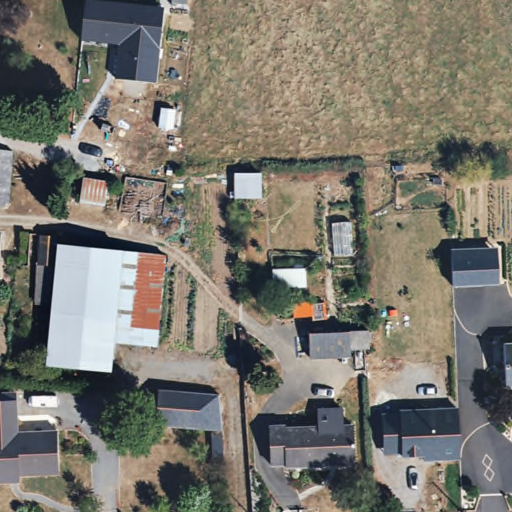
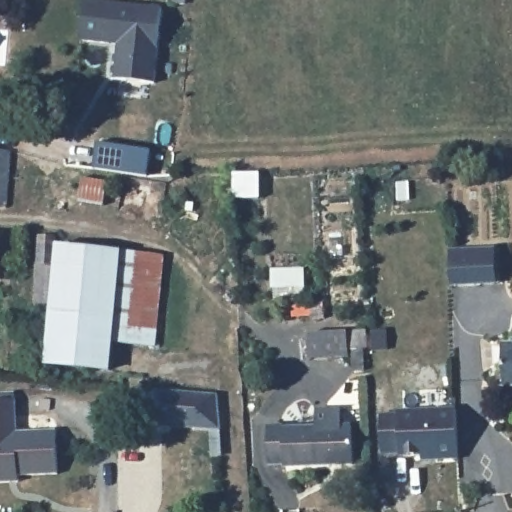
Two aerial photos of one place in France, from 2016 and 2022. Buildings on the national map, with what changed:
unchanged [(112,77),(114,43),(76,39),(81,0),(95,0),(162,7),(152,82),(112,77)]
new [(149,177),(95,170),(99,143),(153,150),(149,177)]
unchanged [(13,196),(0,197),(0,149),(16,149),(13,196)]
unchanged [(31,259),(32,235),(51,235),(51,259),(51,290),(30,289),(31,259)]
unchanged [(156,349),(113,345),(110,376),(45,370),(56,246),(123,252),(165,258),(156,349)]
unchanged [(451,284),(449,251),(495,249),(498,282),(451,284)]
unchanged [(310,356),(309,329),(348,328),(349,354),(310,356)]
unchanged [(502,379),(500,341),(512,340),(512,387),(502,388),(502,379)]
unchanged [(221,431),(156,422),(161,387),(220,396),(221,431)]
unchanged [(60,434),(60,477),(11,476),(11,482),(0,482),(0,400),(21,400),(21,433),(60,434)]
unchanged [(286,456),(269,456),(268,416),(286,416),(285,421),(318,421),(318,404),(346,404),(346,421),(352,421),(352,460),(285,461),(286,456)]
unchanged [(430,460),(430,455),(394,456),(392,411),(450,409),(452,459),(430,460)]

